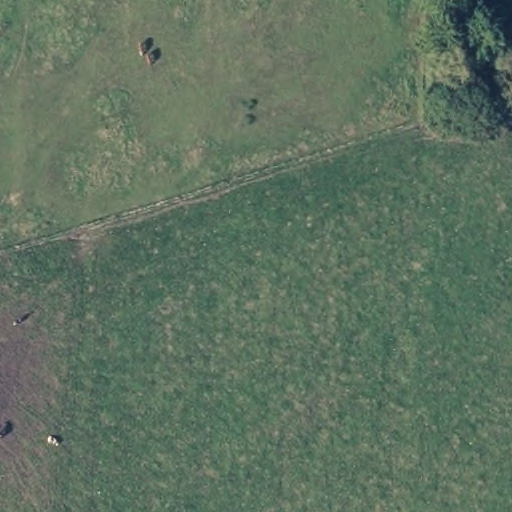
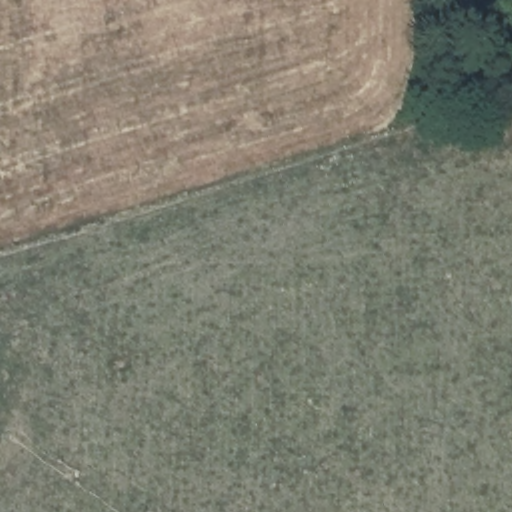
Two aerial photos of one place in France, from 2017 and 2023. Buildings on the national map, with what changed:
[]

